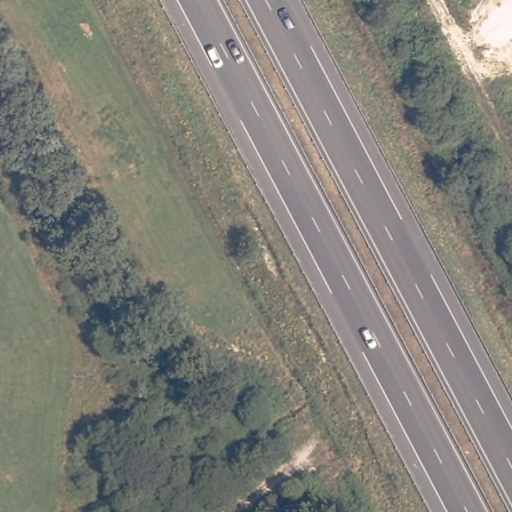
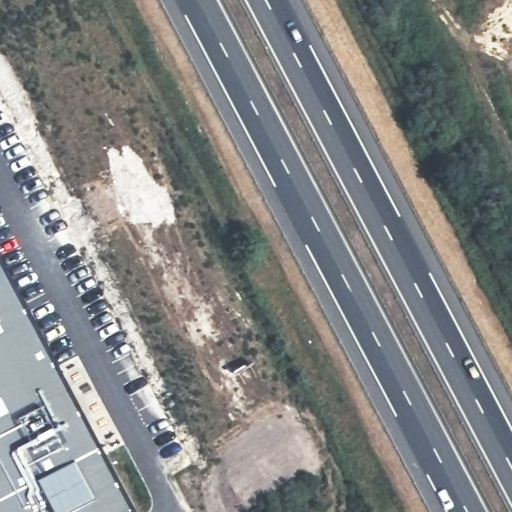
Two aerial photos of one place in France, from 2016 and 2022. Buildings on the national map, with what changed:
new [(133,512),(0,512),(0,258),(133,512)]

